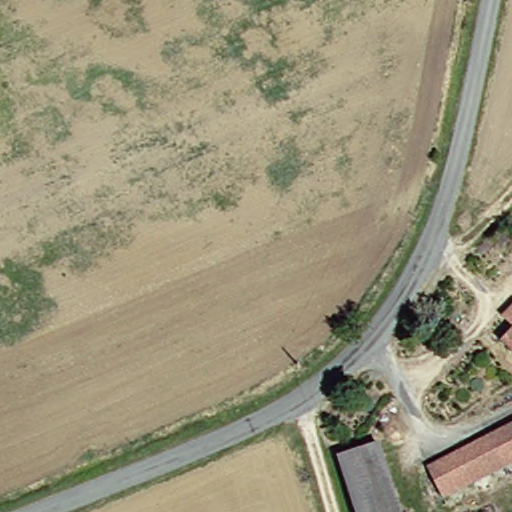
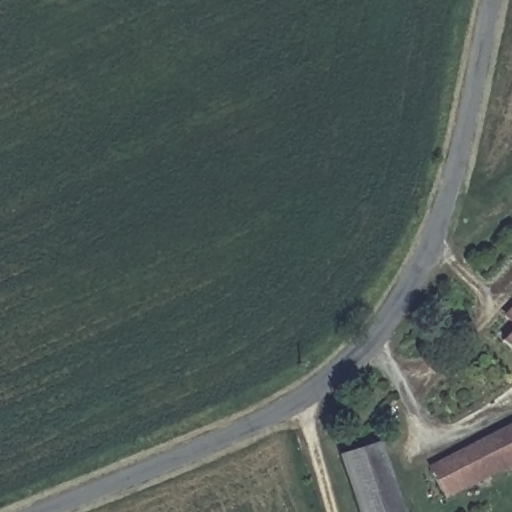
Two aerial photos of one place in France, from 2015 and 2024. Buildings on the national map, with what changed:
unchanged [(512,335),(512,343),(507,339),(512,335)]
unchanged [(471,448),(512,429),(512,464),(452,494),(437,464),(471,448)]
unchanged [(406,512),(365,512),(350,456),(391,444),(406,512)]

